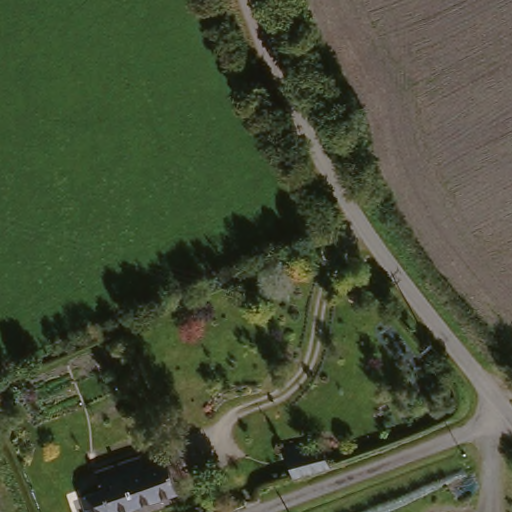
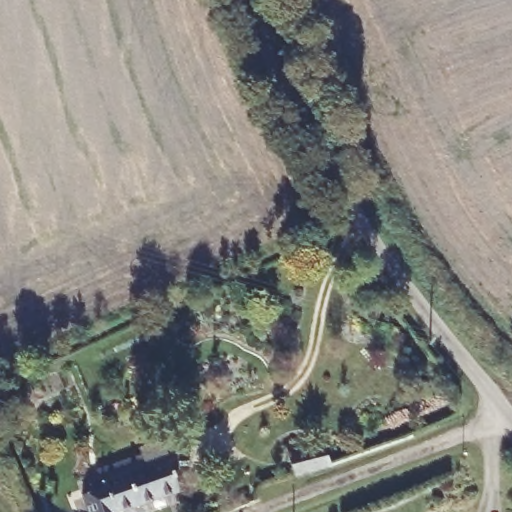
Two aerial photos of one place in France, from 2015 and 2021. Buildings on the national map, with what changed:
unchanged [(312,443),(315,451),(334,445),(338,468),(303,481),(290,447),(312,443)]
unchanged [(175,454),(185,485),(129,509),(129,512),(103,512),(95,491),(116,480),(129,471),(175,454)]

